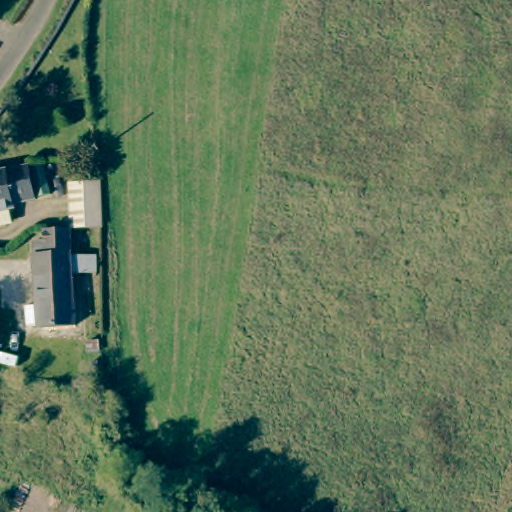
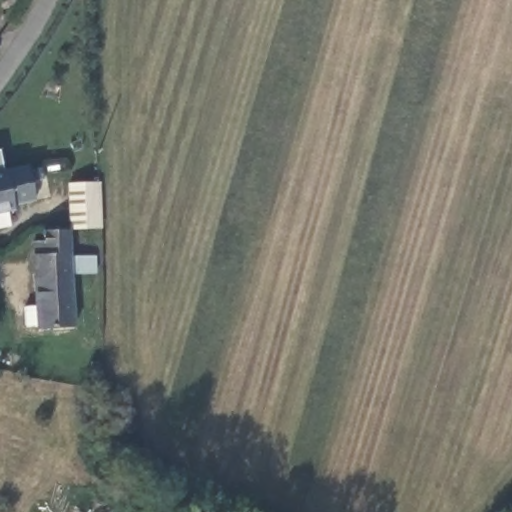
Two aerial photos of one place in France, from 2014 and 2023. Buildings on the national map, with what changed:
unchanged [(26,164),(33,199),(12,204),(12,207),(0,209),(0,169),(26,164)]
unchanged [(67,181),(95,179),(98,224),(71,226),(67,181)]
unchanged [(67,276),(31,276),(29,241),(38,241),(38,229),(42,229),(65,227),(67,276)]
unchanged [(23,305),(32,305),(31,276),(67,276),(70,329),(32,330),(32,326),(24,326),(23,305)]

